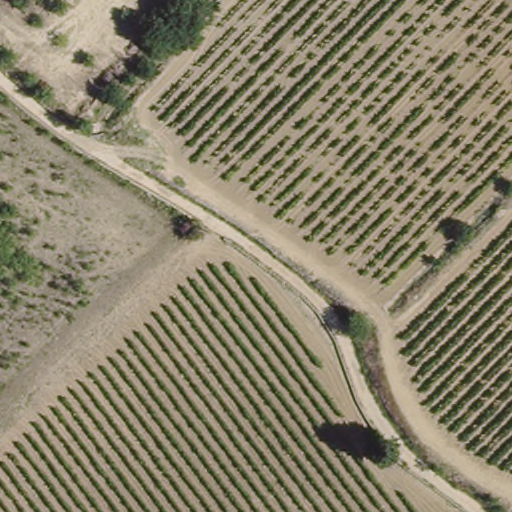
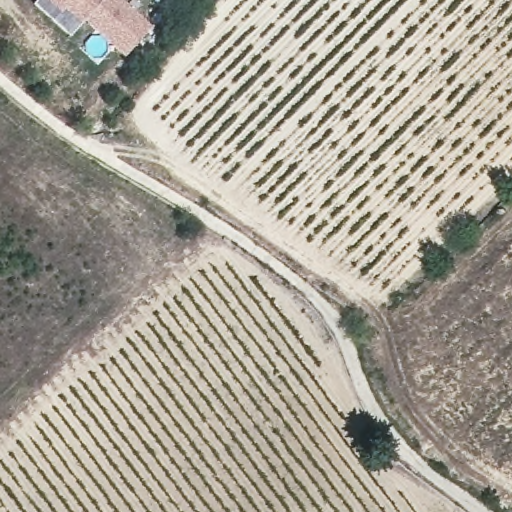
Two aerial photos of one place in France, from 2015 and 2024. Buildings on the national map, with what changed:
new [(154,23),(128,53),(88,17),(85,20),(73,33),(36,0),(128,0),(154,23)]

